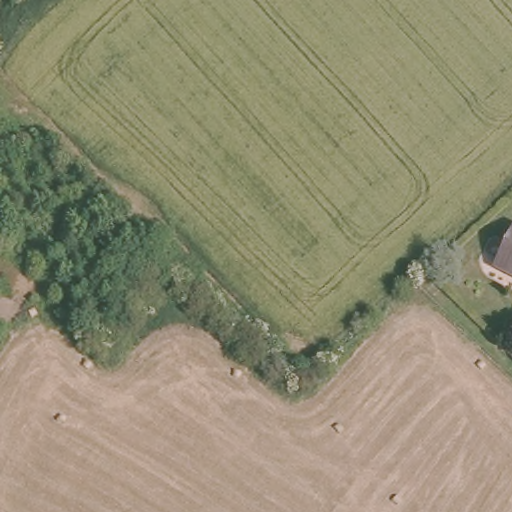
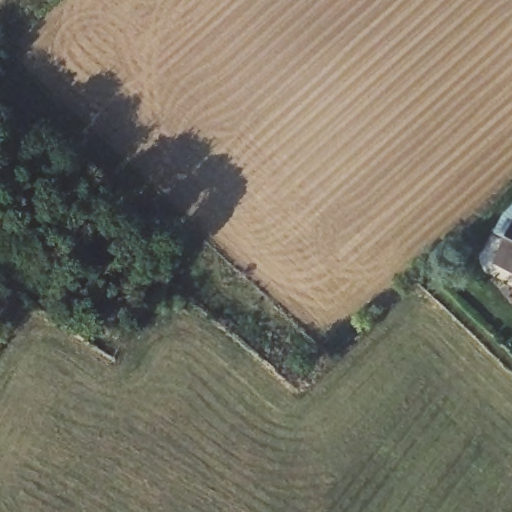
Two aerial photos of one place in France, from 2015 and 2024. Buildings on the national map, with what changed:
unchanged [(512,238),(512,270),(498,264),(512,238)]

